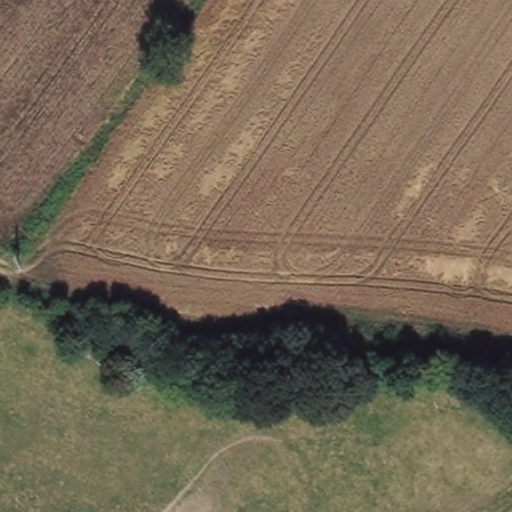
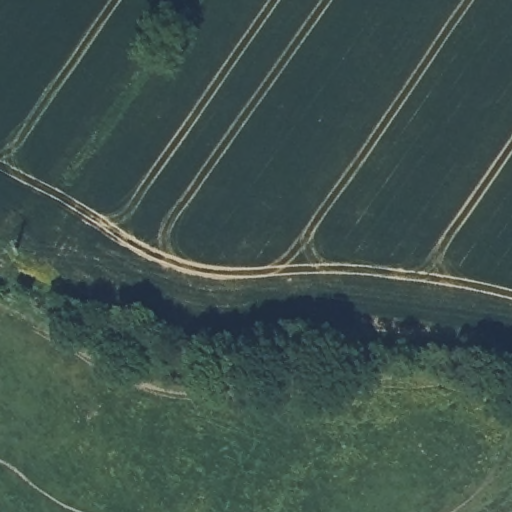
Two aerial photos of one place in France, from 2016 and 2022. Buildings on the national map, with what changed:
[]

